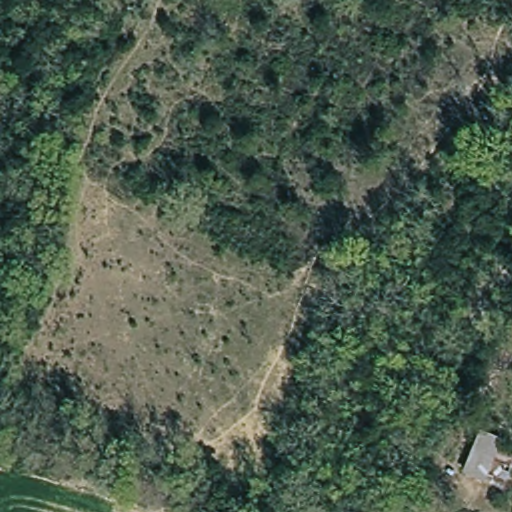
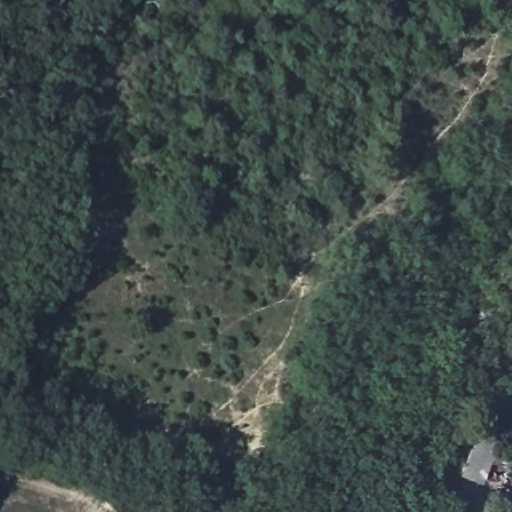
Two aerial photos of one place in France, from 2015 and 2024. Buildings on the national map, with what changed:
unchanged [(485,423),(507,432),(502,453),(512,456),(512,473),(506,491),(487,484),(464,479),(485,423)]

